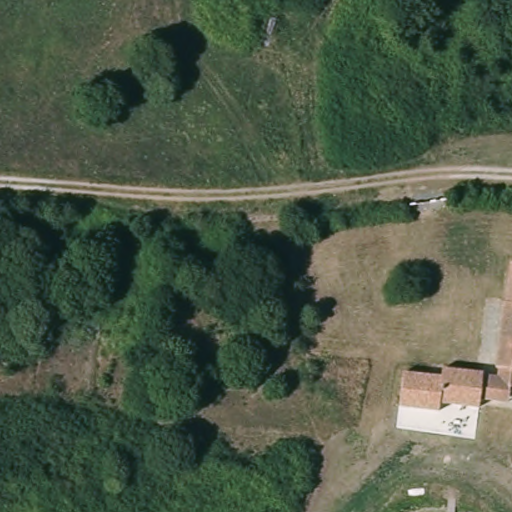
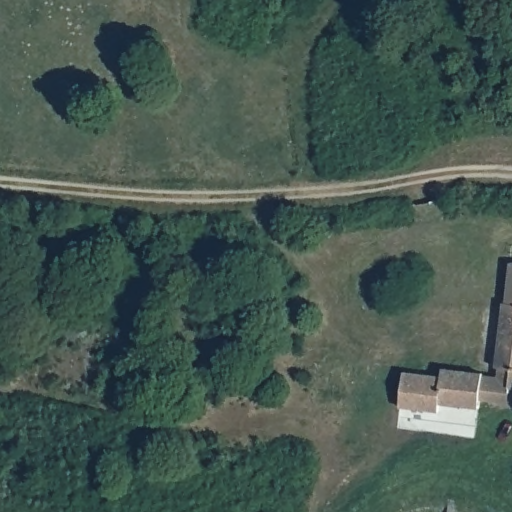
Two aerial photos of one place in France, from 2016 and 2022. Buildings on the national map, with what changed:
unchanged [(508,260),(512,261),(512,306),(503,305),(508,260)]
unchanged [(512,394),(499,392),(500,368),(497,368),(503,305),(512,306),(512,394)]
unchanged [(499,392),(511,394),(510,405),(478,401),(477,409),(438,404),(437,411),(398,407),(402,372),(440,376),(441,367),(482,373),(482,376),(500,377),(499,392)]

